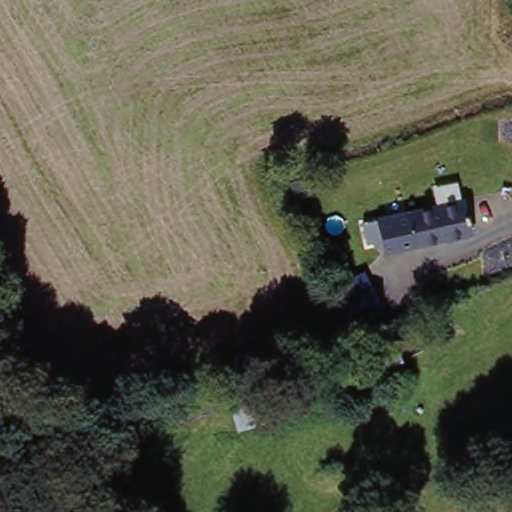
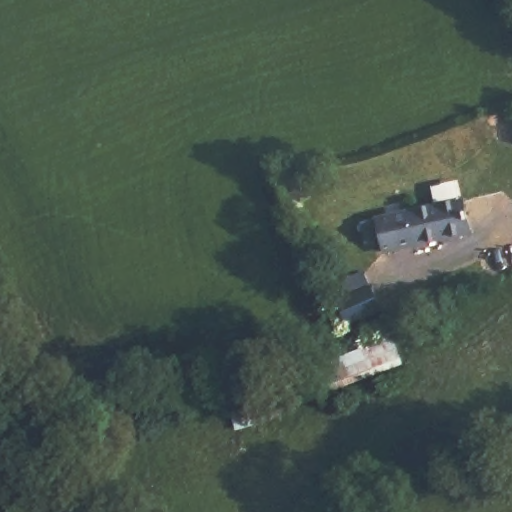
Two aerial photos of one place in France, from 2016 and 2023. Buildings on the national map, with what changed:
unchanged [(412,216),(408,197),(461,183),(466,201),(412,216)]
unchanged [(476,238),(390,261),(379,225),(412,216),(466,201),(476,238)]
unchanged [(348,327),(340,303),(351,298),(346,284),(369,276),(383,313),(348,327)]
unchanged [(327,395),(320,374),(397,345),(405,366),(327,395)]

